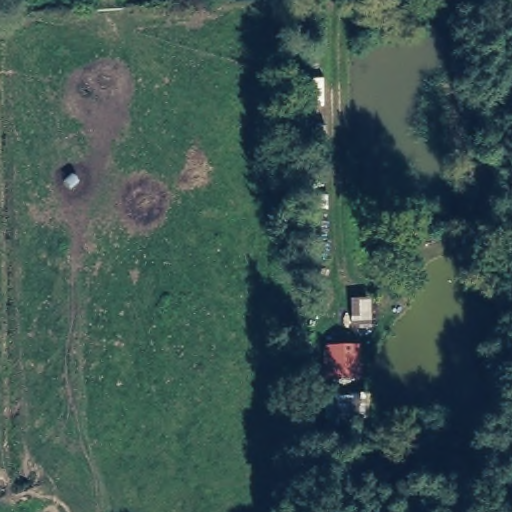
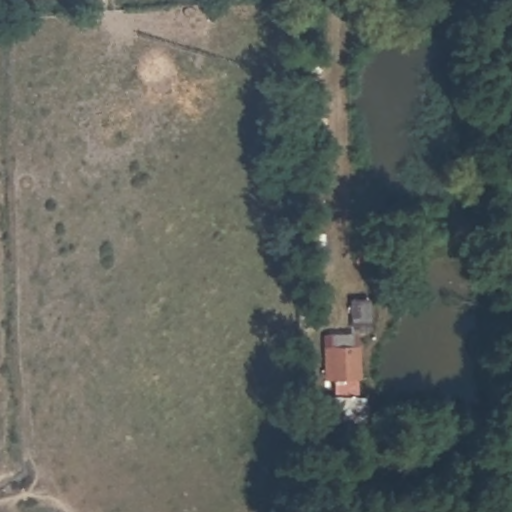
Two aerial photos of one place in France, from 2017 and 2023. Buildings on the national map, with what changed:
unchanged [(348,232),(348,248),(317,256),(317,232),(348,232)]

